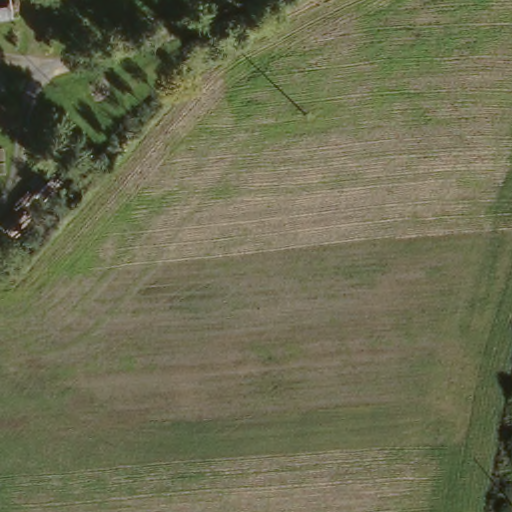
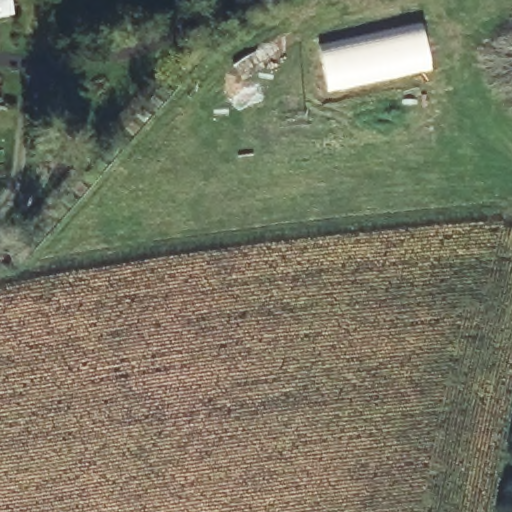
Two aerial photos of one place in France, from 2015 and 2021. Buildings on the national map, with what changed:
unchanged [(14,0),(16,10),(0,13),(0,0),(14,0)]
new [(423,23),(433,69),(330,90),(321,43),(423,23)]

